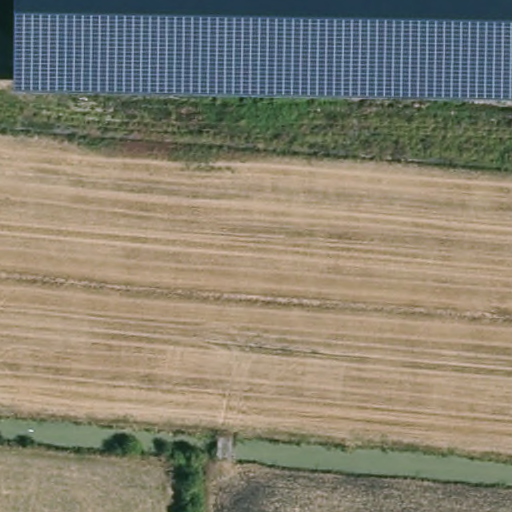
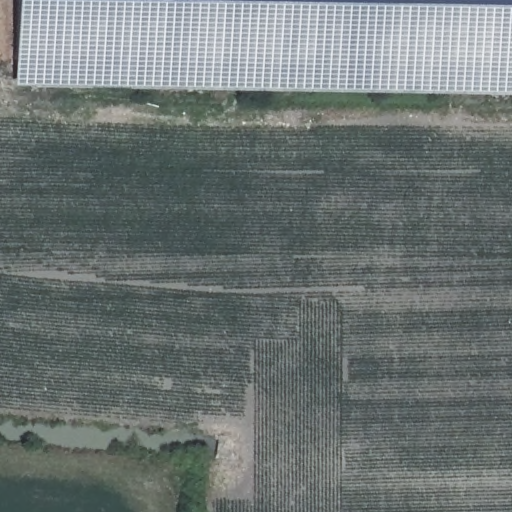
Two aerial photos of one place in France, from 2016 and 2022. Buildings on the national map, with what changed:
unchanged [(17,0),(512,0),(512,97),(15,87),(17,0)]

